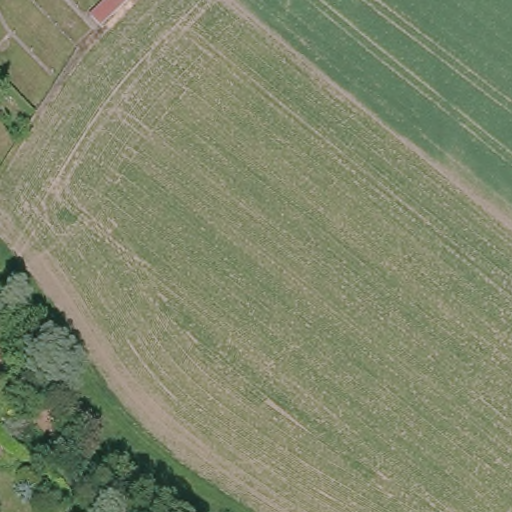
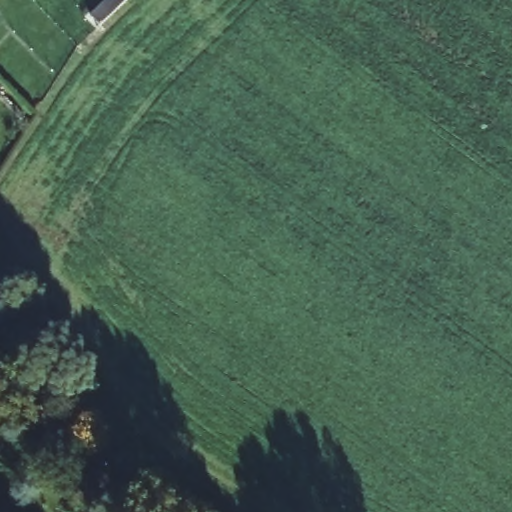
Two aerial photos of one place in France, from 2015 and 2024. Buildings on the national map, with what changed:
unchanged [(97,22),(90,14),(105,0),(121,0),(97,22)]

